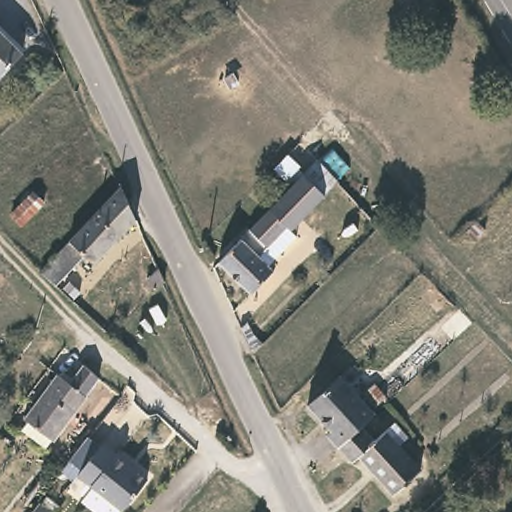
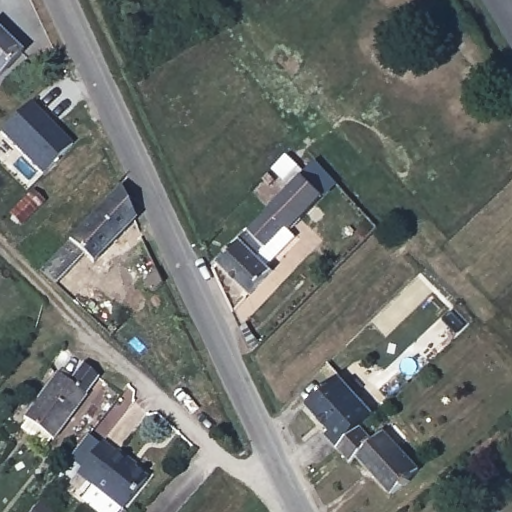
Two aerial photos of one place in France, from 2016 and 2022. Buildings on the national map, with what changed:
unchanged [(20,54),(0,75),(0,35),(20,54)]
new [(27,102),(70,142),(40,174),(0,135),(0,130),(27,102)]
unchanged [(271,263),(276,269),(253,293),(221,261),(318,160),(330,172),(318,184),(326,194),(293,228),(290,225),(282,232),(292,241),(271,263)]
unchanged [(137,216),(92,262),(83,255),(55,284),(40,271),(122,185),(137,216)]
unchanged [(44,204),(23,226),(10,213),(31,191),(44,204)]
unchanged [(173,282),(165,290),(157,283),(168,271),(173,282)]
unchanged [(440,325),(458,308),(471,322),(452,338),(440,325)]
unchanged [(95,381),(82,399),(85,401),(54,442),(53,441),(46,451),(21,432),(28,423),(24,421),(56,379),(65,385),(81,367),(95,381)]
unchanged [(325,433),(330,430),(306,404),(338,374),(373,412),(361,423),(337,446),(325,433)]
unchanged [(376,438),(386,427),(398,416),(412,430),(400,442),(423,466),(396,493),(358,455),(351,462),(337,446),(361,423),(376,438)]
unchanged [(92,487),(76,475),(101,444),(147,476),(122,510),(119,512),(95,512),(81,501),(92,487)]
unchanged [(49,512),(30,512),(37,503),(49,512)]

